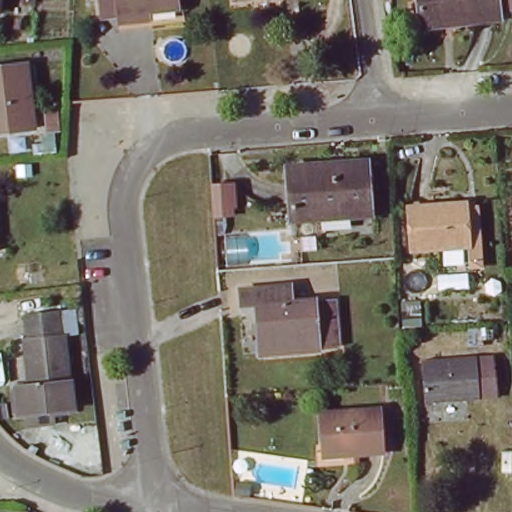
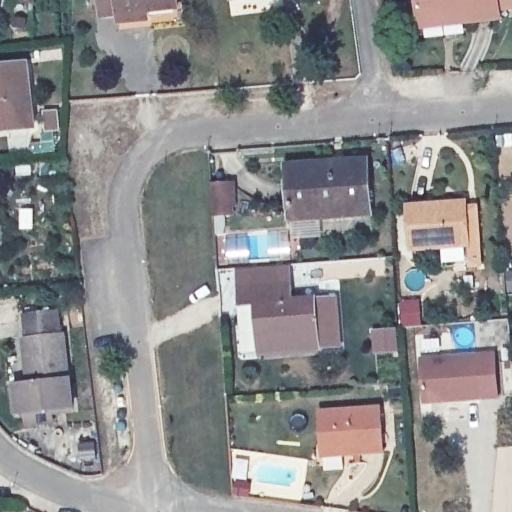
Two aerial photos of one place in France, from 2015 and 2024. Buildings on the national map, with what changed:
unchanged [(119,23),(118,16),(101,18),(99,0),(174,0),(175,10),(145,13),(145,20),(119,23)]
unchanged [(500,22),(465,26),(463,18),(419,24),(416,0),(497,0),(500,22)]
unchanged [(28,66),(36,131),(0,136),(0,69),(28,66)]
unchanged [(372,162),(376,210),(325,214),(325,222),(297,224),(292,168),(372,162)]
unchanged [(240,215),(215,219),(211,186),(236,182),(240,215)]
unchanged [(467,203),(471,246),(416,251),(413,207),(467,203)]
unchanged [(2,248),(0,248),(0,221),(2,248)]
unchanged [(299,299),(341,303),(345,349),(256,359),(254,307),(244,308),(244,289),(295,283),(299,299)]
unchanged [(28,423),(27,410),(18,411),(15,383),(27,382),(22,336),(27,336),(25,310),(56,307),(58,332),(63,331),(71,405),(52,407),(53,420),(28,423)]
unchanged [(495,357),(498,400),(430,406),(426,363),(495,357)]
unchanged [(327,462),(326,451),(324,415),(385,410),(387,452),(356,455),(357,460),(327,462)]

